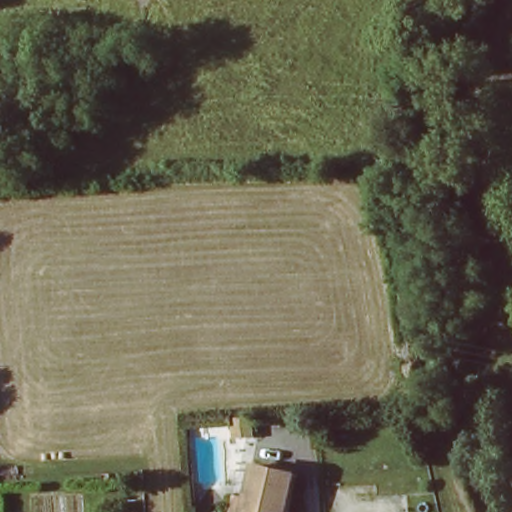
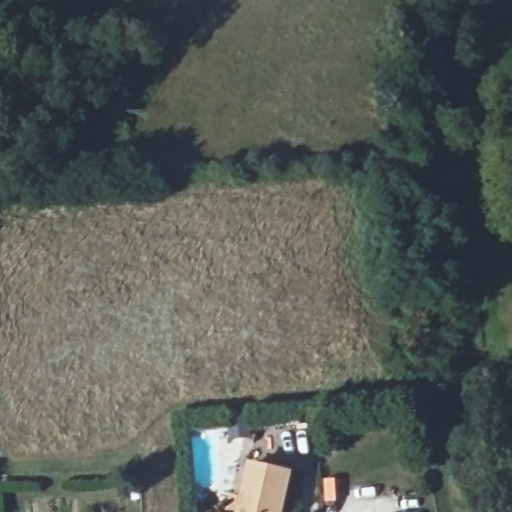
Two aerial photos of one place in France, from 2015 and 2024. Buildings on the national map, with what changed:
unchanged [(295,474),(278,512),(237,512),(251,463),(295,474)]

